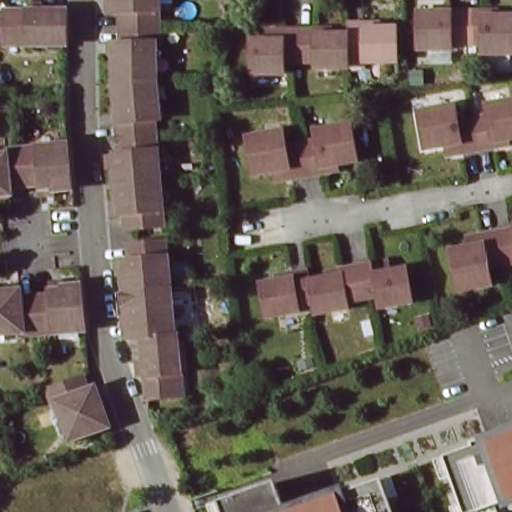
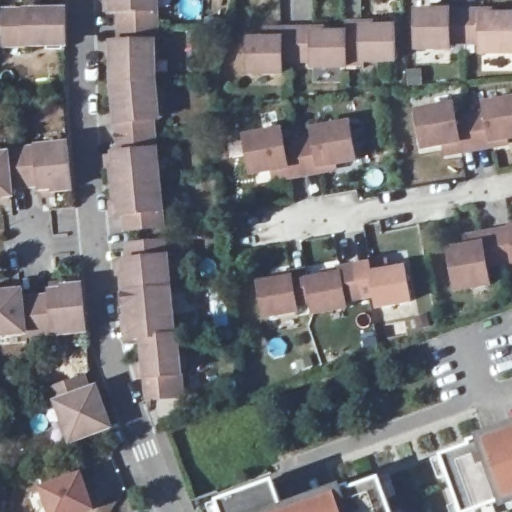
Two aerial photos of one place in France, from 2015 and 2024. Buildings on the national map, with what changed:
unchanged [(114,8),(109,8),(109,0),(151,0),(151,21),(114,23),(114,8)]
unchanged [(60,6),(60,35),(60,40),(20,40),(20,36),(0,36),(0,7),(60,6)]
unchanged [(465,43),(451,43),(451,49),(416,49),(416,11),(465,11),(465,43)]
unchanged [(481,43),(465,43),(465,11),(481,11),(496,11),(496,16),(512,16),(512,53),(480,54),(481,43)]
unchanged [(351,18),(367,18),(382,17),(382,22),(401,21),(401,55),(367,56),(367,50),(351,50),(351,28),(351,21),(351,18)]
unchanged [(109,78),(108,48),(113,48),(113,38),(115,37),(114,23),(151,21),(152,38),(148,38),(149,76),(109,78)]
unchanged [(334,23),(334,28),(351,28),(351,50),(352,61),(319,62),(319,56),(303,56),(302,24),(318,24),(334,23)]
unchanged [(295,56),(286,56),(287,71),(254,71),(254,34),(270,33),(270,24),(286,24),(302,24),(303,56),(295,56)]
unchanged [(149,76),(152,115),(147,115),(149,130),(112,133),(111,118),(117,117),(117,108),(112,108),(109,78),(149,76)]
unchanged [(481,149),(475,116),(485,115),(483,105),(512,99),(512,138),(512,140),(512,143),(497,146),(481,149)]
unchanged [(446,145),(422,149),(416,111),(453,105),(456,121),(475,116),(481,149),(464,151),(448,154),(446,145)]
unchanged [(322,172),(305,175),(300,143),(314,140),(312,130),(349,123),(356,161),(337,164),(338,169),(322,172)]
unchanged [(149,130),(153,176),(110,180),(108,161),(110,161),(109,149),(113,148),(112,133),(149,130)]
unchanged [(271,171),(251,174),(244,137),(282,131),(284,146),(300,143),(305,175),(289,178),(273,181),(271,171)]
unchanged [(11,145),(58,141),(62,184),(44,186),(43,184),(30,186),(30,181),(14,183),(11,145)]
unchanged [(14,183),(0,184),(0,146),(11,145),(14,183)]
unchanged [(157,222),(121,226),(119,211),(115,211),(113,198),(111,198),(110,180),(153,176),(157,222)]
unchanged [(502,269),(496,237),(512,234),(512,267),(502,269)]
unchanged [(120,287),(118,269),(120,269),(119,256),(124,256),(122,240),(159,237),(163,283),(160,284),(120,287)]
unchanged [(502,269),(487,271),(491,289),(455,296),(448,256),(466,253),(464,243),(480,240),(496,237),(502,269)]
unchanged [(411,307),(377,313),(375,301),(370,302),(361,303),(356,272),(372,269),(388,266),(390,276),(405,273),(411,307)]
unchanged [(346,306),(347,312),(314,318),(312,308),(308,285),(324,283),(323,278),(339,275),(356,272),(361,303),(346,306)]
unchanged [(297,310),(298,317),(264,323),(259,288),(275,286),(274,281),(291,278),(307,275),(308,285),(312,308),(297,310)]
unchanged [(30,294),(46,292),(45,288),(58,286),(58,284),(77,282),(81,326),(34,331),(30,294)]
unchanged [(138,333),(128,334),(126,313),(123,313),(120,287),(160,284),(165,331),(138,333)]
unchanged [(34,331),(17,332),(17,328),(0,330),(0,289),(3,289),(4,294),(14,293),(15,295),(30,294),(34,331)]
unchanged [(165,331),(171,330),(175,370),(171,371),(173,392),(144,395),(138,333),(165,331)]
unchanged [(79,372),(84,387),(86,386),(89,396),(94,395),(104,423),(67,436),(53,399),(50,400),(44,385),(79,372)]
unchanged [(281,507),(512,423),(512,512),(192,512),(189,504),(270,475),(281,507)]
new [(40,486),(42,486),(38,473),(69,462),(73,475),(83,472),(96,511),(93,512),(49,512),(40,486)]

